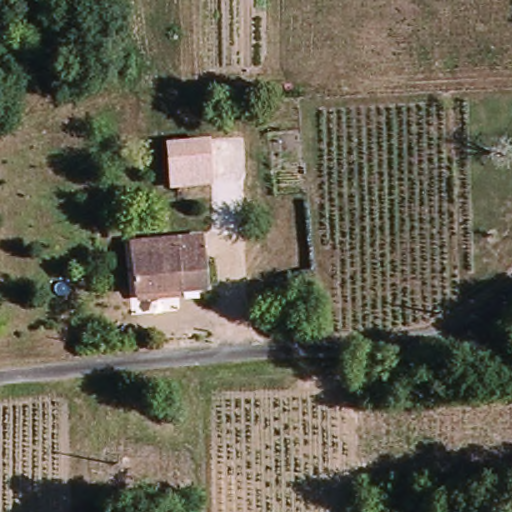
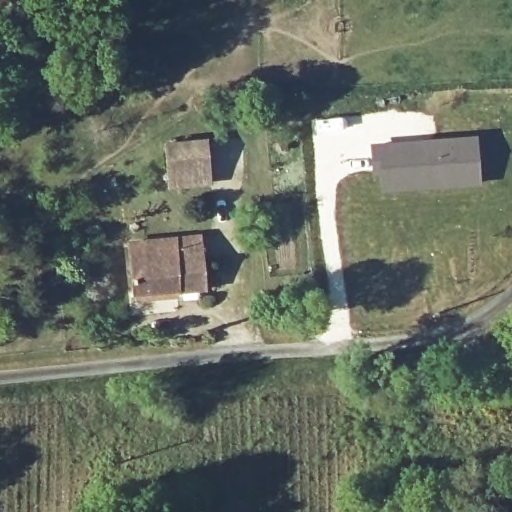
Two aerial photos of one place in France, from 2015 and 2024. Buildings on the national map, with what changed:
new [(477,135),(481,186),(379,194),(377,175),(371,175),(369,144),(477,135)]
unchanged [(207,139),(212,185),(169,189),(164,144),(207,139)]
unchanged [(199,240),(202,292),(135,297),(130,246),(199,240)]

